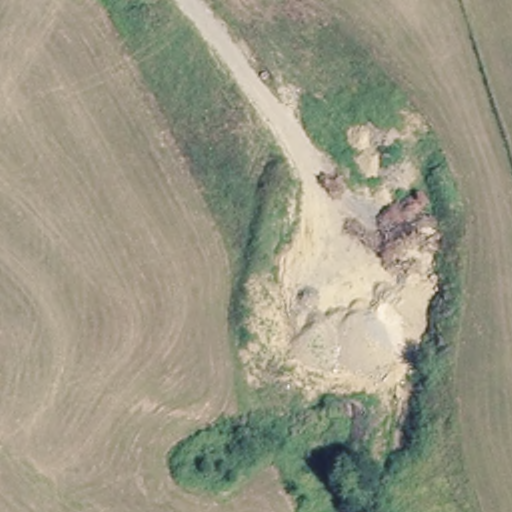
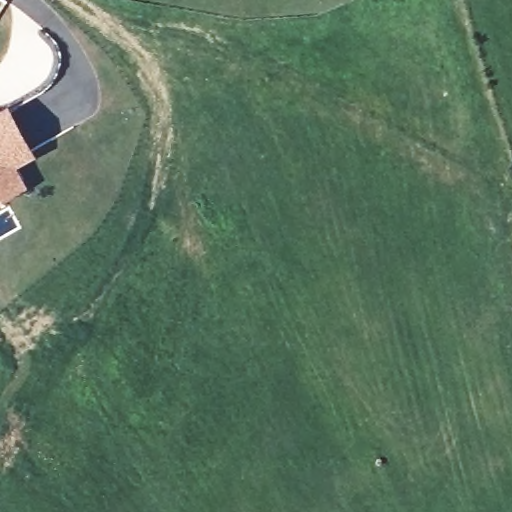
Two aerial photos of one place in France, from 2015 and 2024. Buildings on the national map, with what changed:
new [(0,114),(6,111),(30,152),(11,163),(15,172),(20,181),(0,192),(0,114)]

